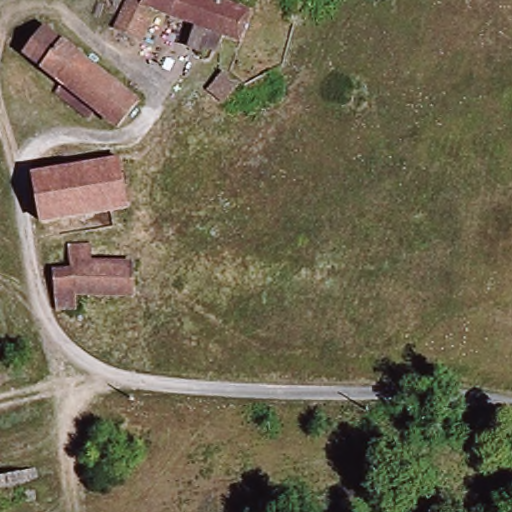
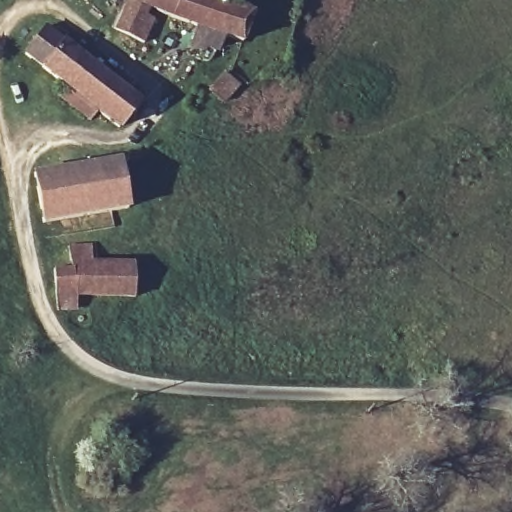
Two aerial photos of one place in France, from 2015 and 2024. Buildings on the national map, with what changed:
unchanged [(200,47),(196,56),(183,50),(191,29),(173,17),(146,10),(143,16),(151,19),(141,43),(109,31),(121,0),(218,0),(254,14),(241,46),(223,40),(216,54),(200,47)]
unchanged [(299,22),(296,32),(291,31),(286,30),(288,20),(294,21),(299,22)]
unchanged [(136,100),(116,125),(21,52),(41,27),(136,100)]
unchanged [(53,221),(45,171),(127,157),(135,207),(120,209),(122,231),(72,237),(69,219),(53,221)]
unchanged [(75,290),(78,245),(99,245),(98,262),(143,264),(142,291),(75,290)]

